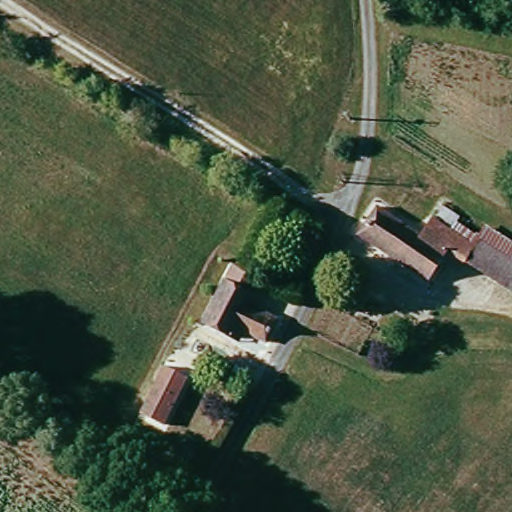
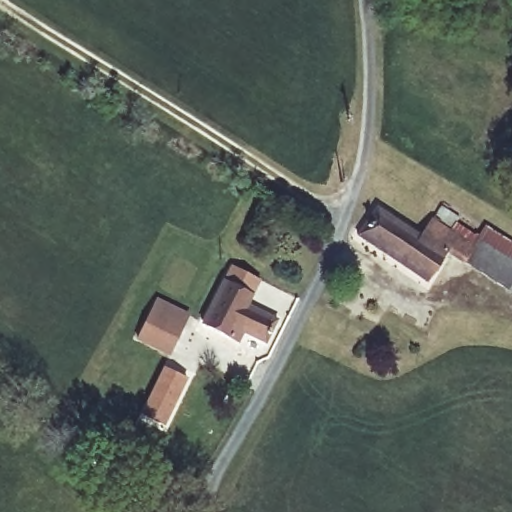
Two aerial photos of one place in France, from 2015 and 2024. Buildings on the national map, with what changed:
unchanged [(430,280),(360,238),(377,209),(430,240),(447,211),(467,223),(458,238),(473,247),(480,237),(487,226),(512,242),(512,290),(448,252),(430,280)]
unchanged [(226,339),(197,322),(230,265),(258,282),(245,305),(272,321),(260,344),(242,334),(236,345),(226,339)]
new [(135,341),(156,299),(189,315),(168,357),(135,341)]
unchanged [(169,370),(192,381),(167,431),(145,420),(169,370)]

